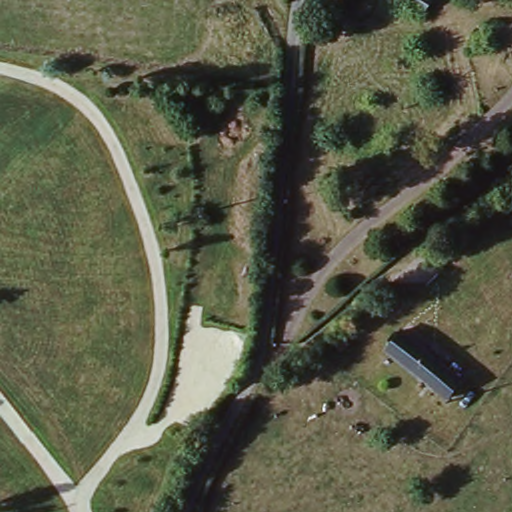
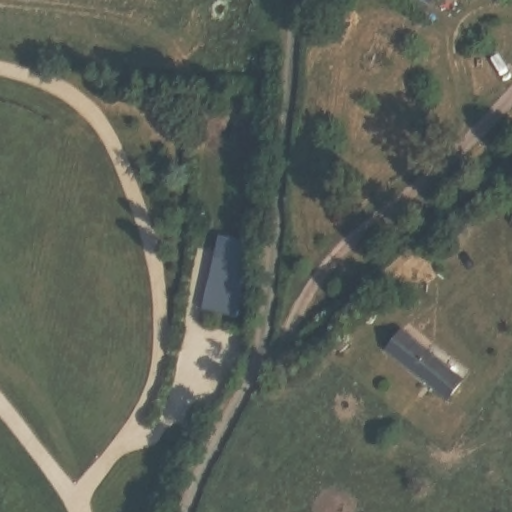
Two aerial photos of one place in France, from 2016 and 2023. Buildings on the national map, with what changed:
unchanged [(427,11),(400,0),(432,0),(427,11)]
new [(213,261),(245,269),(233,318),(201,310),(213,261)]
unchanged [(397,336),(461,383),(446,402),(382,354),(397,336)]

